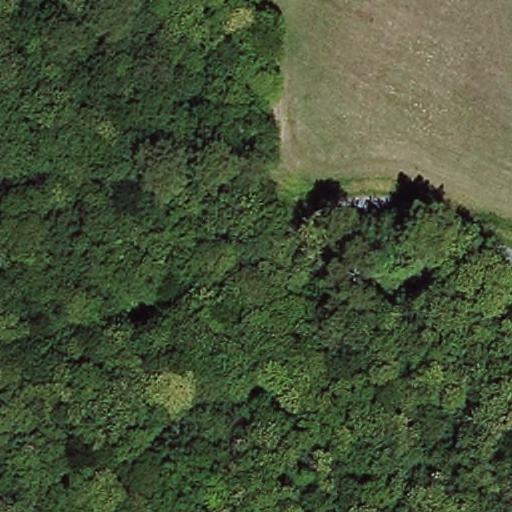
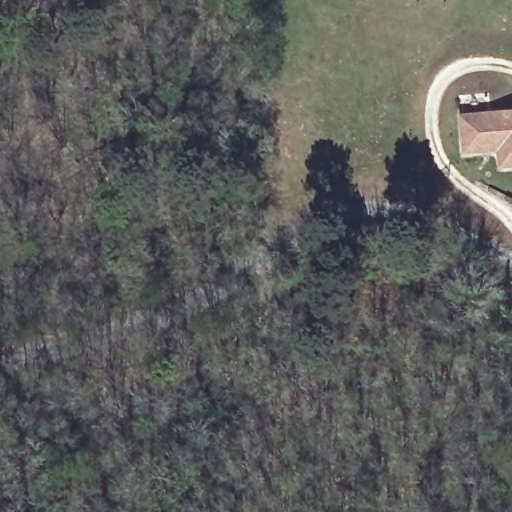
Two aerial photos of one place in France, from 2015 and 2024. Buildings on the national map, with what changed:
new [(512,113),(512,163),(502,164),(500,150),(465,152),(461,117),(512,113)]

